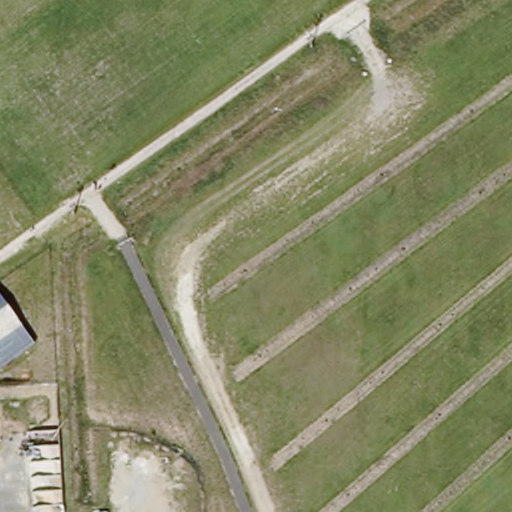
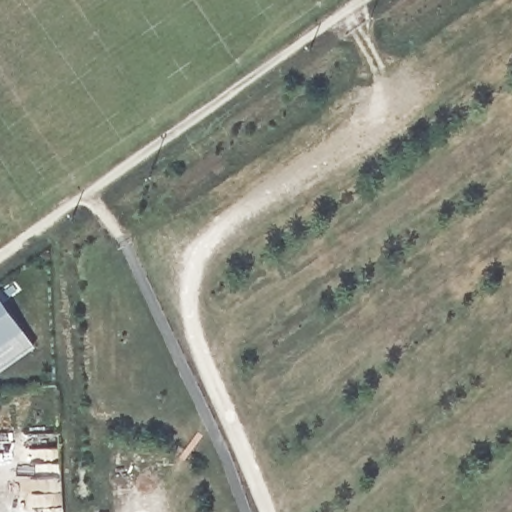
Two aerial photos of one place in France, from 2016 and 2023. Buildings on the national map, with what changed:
unchanged [(36,347),(0,374),(0,295),(36,347)]

